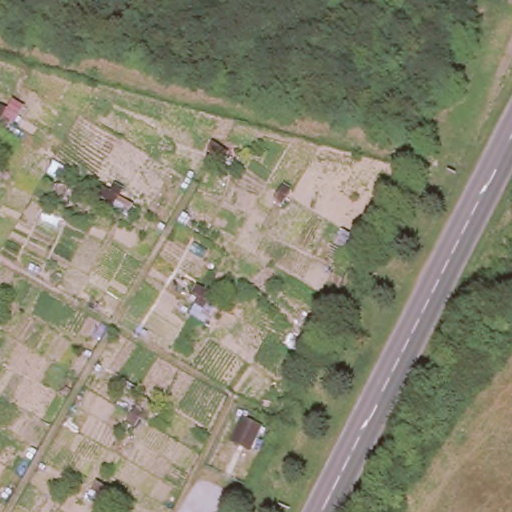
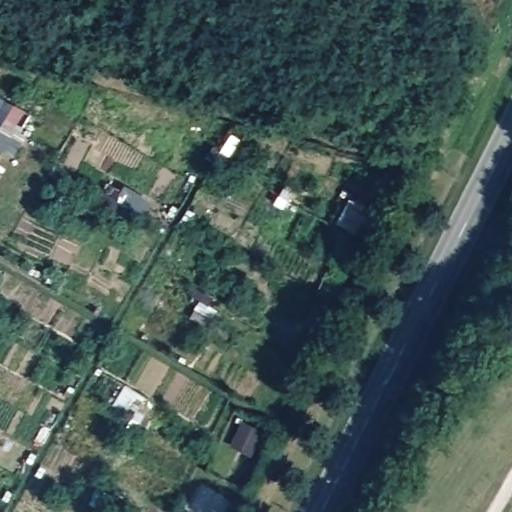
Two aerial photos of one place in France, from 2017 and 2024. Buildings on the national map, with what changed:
unchanged [(245,420),(264,427),(255,451),(236,444),(245,420)]

